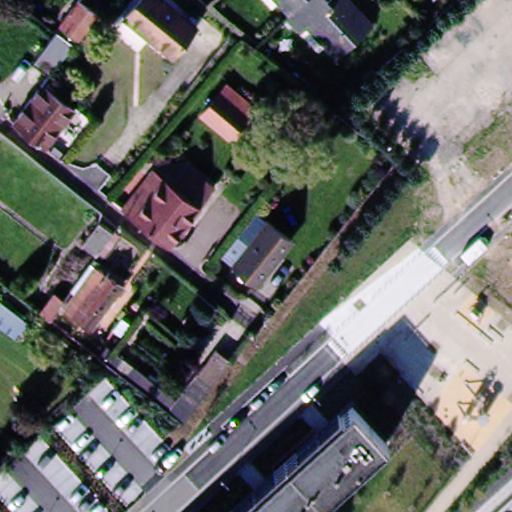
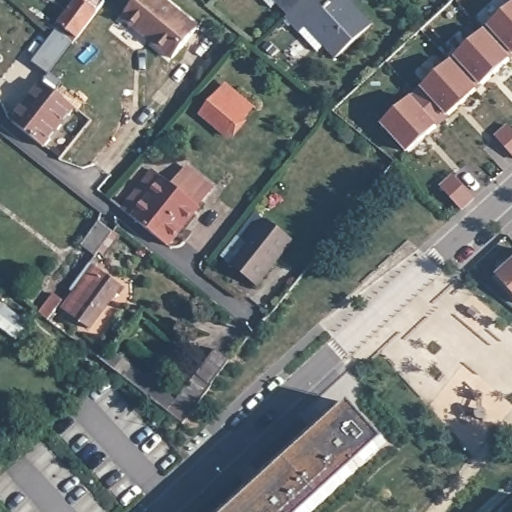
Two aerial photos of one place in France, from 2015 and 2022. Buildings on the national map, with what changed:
unchanged [(63,19),(78,0),(92,0),(101,6),(81,31),(63,19)]
unchanged [(170,0),(198,24),(173,54),(124,14),(136,0),(170,0)]
unchanged [(304,0),(286,16),(274,3),(268,9),(259,0),(304,0)]
unchanged [(296,36),(282,20),(285,18),(286,18),(286,16),(304,0),(324,0),(343,0),(369,28),(334,59),(324,47),(314,55),(298,35),(296,36)]
new [(509,61),(484,34),(489,29),(512,7),(512,58),(509,61)]
new [(509,62),(481,88),(481,87),(475,91),(451,64),(456,59),(484,34),(509,62)]
unchanged [(57,38),(65,44),(61,49),(66,52),(48,74),(36,65),(57,38)]
new [(476,93),(448,118),(447,117),(442,123),(417,95),(423,90),(422,89),(450,64),(451,65),(476,93)]
unchanged [(80,100),(43,147),(10,121),(48,74),(64,88),(80,100)]
unchanged [(249,118),(232,139),(206,116),(223,95),(249,118)]
new [(436,128),(437,129),(409,154),(383,125),(410,100),(411,101),(417,95),(442,123),(436,128)]
new [(494,139),(508,128),(512,133),(512,160),(494,139)]
unchanged [(176,184),(189,167),(218,189),(173,245),(115,200),(141,168),(146,161),(157,170),(176,184)]
new [(460,211),(440,189),(453,177),(473,199),(460,211)]
unchanged [(105,219),(120,229),(101,254),(86,244),(105,219)]
unchanged [(255,283),(231,264),(265,222),(289,240),(255,283)]
new [(512,263),(512,296),(496,278),(512,263)]
unchanged [(93,328),(67,308),(98,268),(124,287),(93,328)]
unchanged [(66,301),(52,320),(38,309),(51,290),(66,301)]
unchanged [(14,338),(0,326),(0,302),(27,324),(14,338)]
unchanged [(164,409),(136,386),(106,363),(105,362),(113,351),(145,374),(174,397),(179,400),(198,376),(198,375),(217,352),(231,363),(212,387),(211,386),(183,423),(164,409)]
unchanged [(354,403),(389,440),(309,512),(234,512),(354,403)]

